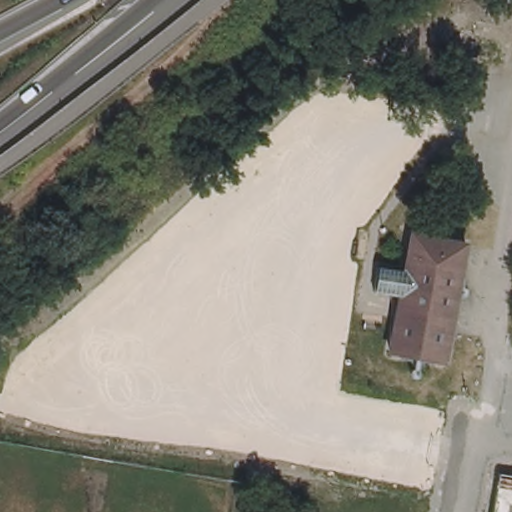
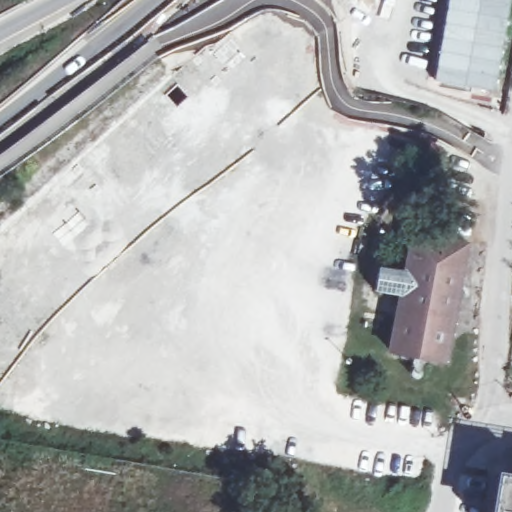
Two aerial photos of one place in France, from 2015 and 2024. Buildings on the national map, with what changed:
new [(511,0),(494,92),(434,83),(448,0),(511,0)]
demolished [(479,35),(481,21),(512,27),(512,41),(479,35)]
unchanged [(393,349),(403,295),(376,290),(381,265),(407,271),(414,232),(429,235),(468,242),(448,360),(393,349)]
new [(499,473),(512,475),(512,512),(491,512),(499,473)]

